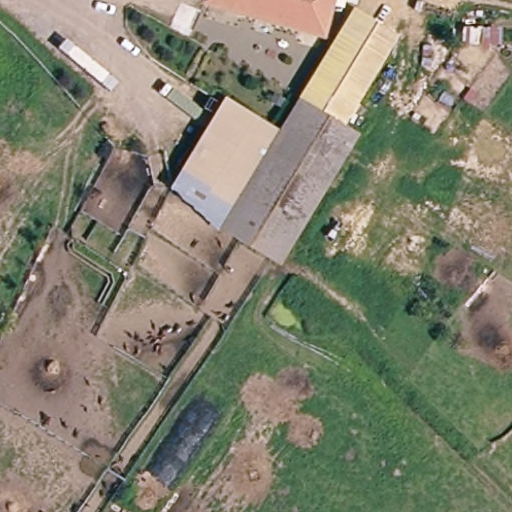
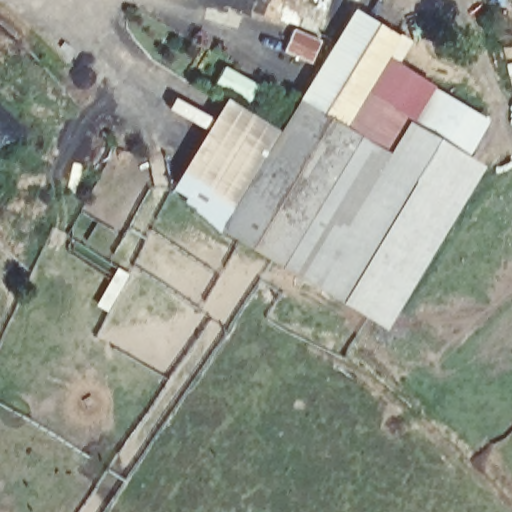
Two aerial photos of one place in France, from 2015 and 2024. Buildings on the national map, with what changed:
demolished [(205,5),(206,0),(331,0),(323,34),(205,5)]
unchanged [(237,105),(284,134),(365,13),(404,38),(350,128),(362,136),(334,176),(286,141),(226,224),(178,188),(237,105)]
new [(293,28),(320,40),(311,62),(284,51),(293,28)]
new [(512,46),(512,96),(511,96),(502,47),(512,46)]
new [(408,120),(387,152),(362,136),(350,128),(392,58),(434,85),(432,87),(486,119),(465,155),(408,120)]
new [(512,105),(512,111),(511,105),(512,105)]
new [(387,152),(408,120),(483,166),(384,328),(274,260),(334,176),(362,136),(387,152)]
unchanged [(226,224),(286,141),(334,176),(274,260),(226,224)]

